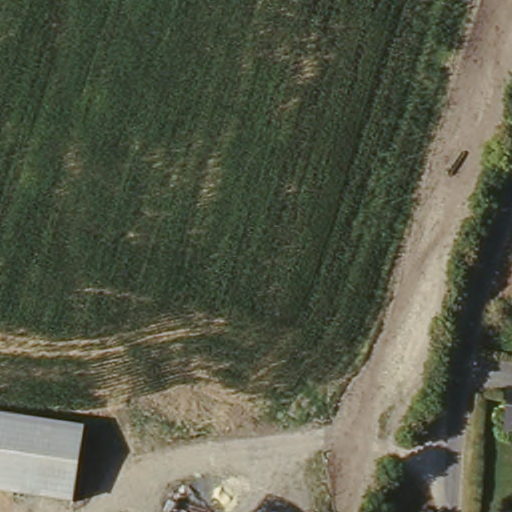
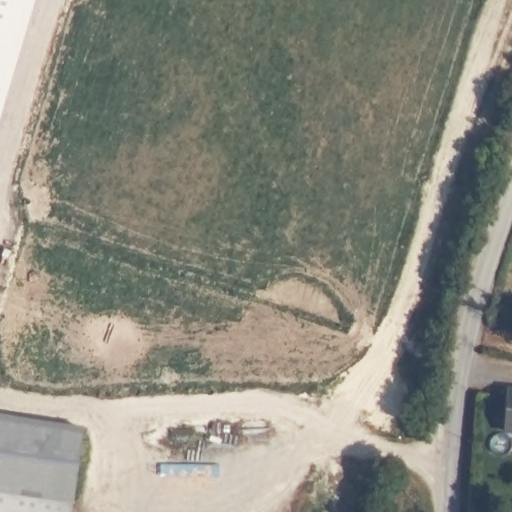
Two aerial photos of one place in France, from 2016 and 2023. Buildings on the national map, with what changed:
new [(39,0),(0,132),(0,0),(39,0)]
unchanged [(512,428),(508,428),(511,387),(512,387),(512,428)]
unchanged [(85,429),(71,512),(0,512),(0,416),(85,429)]

